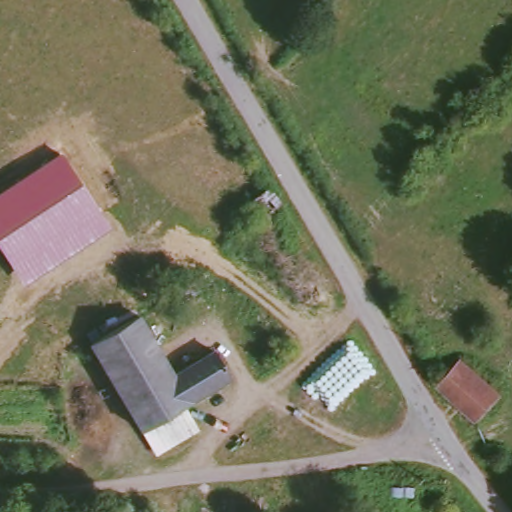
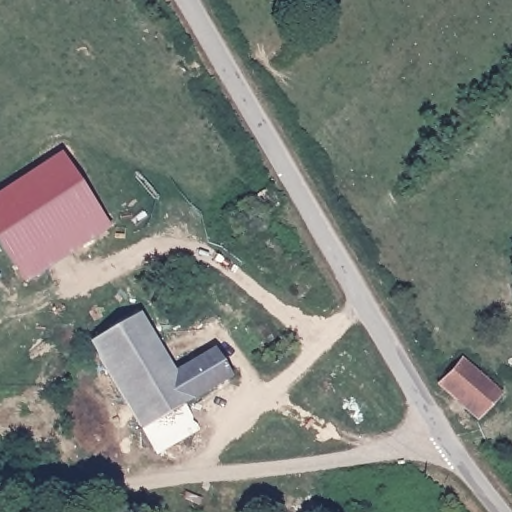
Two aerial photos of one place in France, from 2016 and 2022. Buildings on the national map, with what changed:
unchanged [(110,229),(25,285),(0,247),(0,192),(61,154),(110,229)]
unchanged [(265,213),(259,217),(247,202),(263,190),(276,205),(265,213)]
unchanged [(87,344),(135,311),(174,374),(212,350),(232,379),(141,430),(93,352),(87,344)]
unchanged [(497,393),(472,418),(432,382),(442,372),(457,356),(497,393)]

